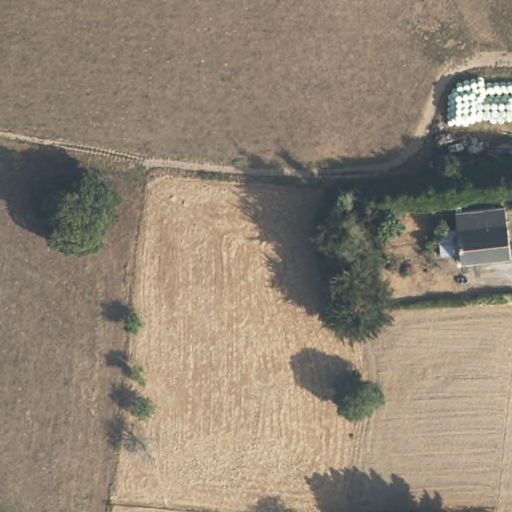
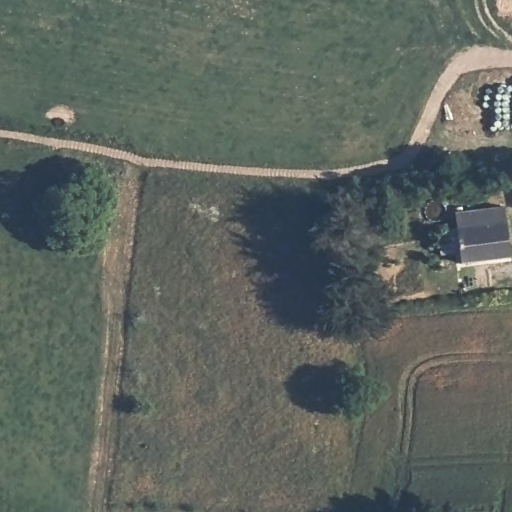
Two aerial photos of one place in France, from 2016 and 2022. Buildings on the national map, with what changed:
unchanged [(473,227),(472,215),(503,211),(509,257),(458,263),(457,256),(441,260),(437,231),(452,230),(453,233),(473,227)]

